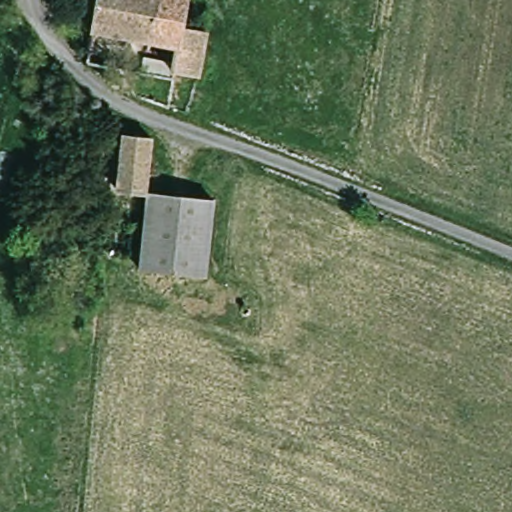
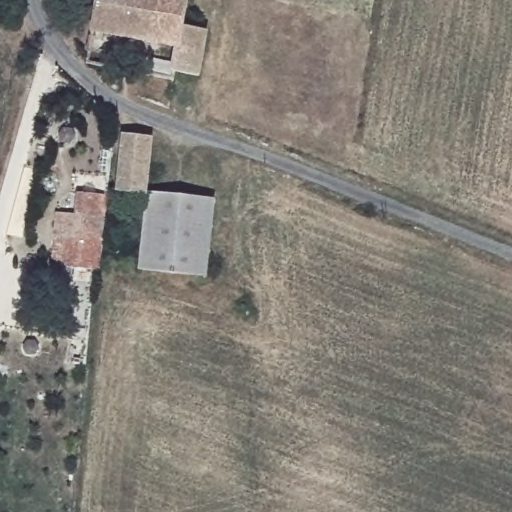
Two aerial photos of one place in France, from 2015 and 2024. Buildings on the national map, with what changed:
unchanged [(187,27),(211,32),(203,76),(179,71),(178,80),(147,75),(144,75),(148,57),(176,63),(179,48),(95,32),(98,13),(101,0),(192,0),(187,27)]
unchanged [(144,195),(116,191),(123,136),(151,139),(144,195)]
new [(60,266),(60,260),(51,259),(56,212),(75,214),(77,192),(108,195),(99,270),(60,266)]
unchanged [(204,276),(138,270),(146,195),(213,201),(204,276)]
demolished [(104,218),(101,243),(79,241),(82,216),(104,218)]

